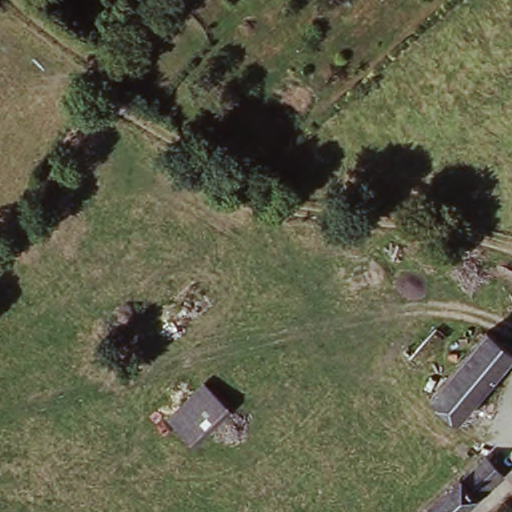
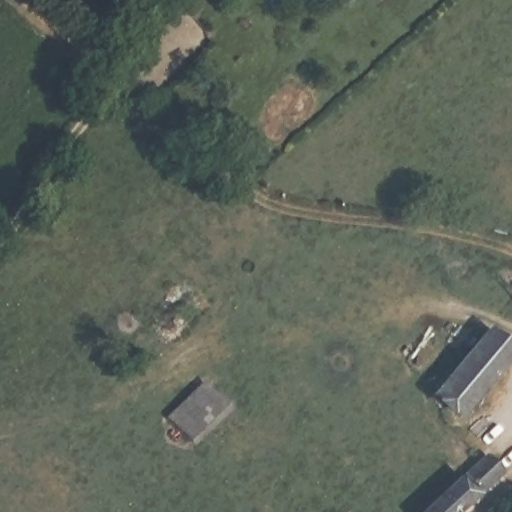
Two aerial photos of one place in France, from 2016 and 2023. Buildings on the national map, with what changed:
unchanged [(512,360),(512,363),(462,424),(455,418),(452,422),(431,405),(487,338),(512,360)]
unchanged [(204,384),(225,407),(187,444),(165,421),(204,384)]
unchanged [(484,460),(503,480),(470,512),(431,512),(484,460)]

